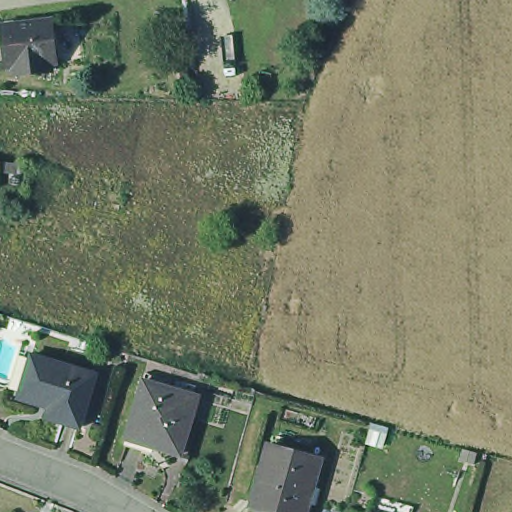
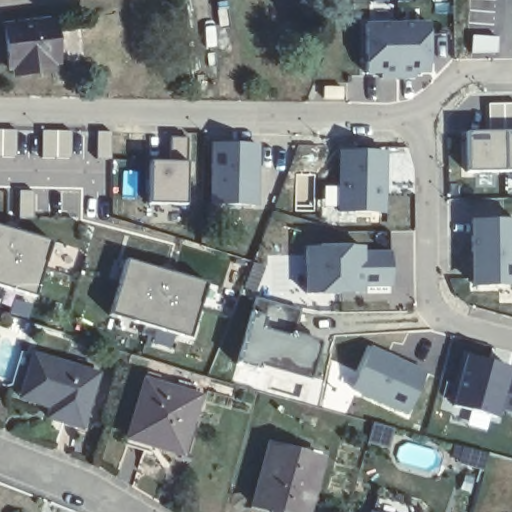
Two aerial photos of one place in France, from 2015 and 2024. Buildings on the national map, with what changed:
new [(433,21),(433,78),(366,78),(366,21),(433,21)]
unchanged [(18,73),(13,74),(7,32),(57,26),(62,68),(55,69),(56,77),(34,79),(19,80),(18,73)]
new [(512,171),(467,171),(467,130),(489,130),(489,103),(512,103),(512,171)]
new [(16,130),(16,158),(0,158),(0,130),(16,130)]
new [(71,131),(71,159),(42,159),(42,131),(71,131)]
new [(97,131),(111,131),(111,159),(96,159),(97,131)]
new [(171,161),(171,137),(187,137),(187,203),(151,203),(152,160),(171,161)]
new [(263,145),(262,210),(211,209),(211,144),(263,145)]
new [(387,212),(338,212),(338,207),(325,207),(325,186),(339,186),(339,150),(387,149),(387,212)]
demolished [(11,159),(10,171),(0,170),(0,159),(11,159)]
new [(20,191),(35,191),(35,219),(20,219),(20,191)]
new [(512,287),(472,286),(472,219),(512,219),(512,287)]
new [(51,241),(36,297),(2,285),(0,295),(0,226),(51,241)]
new [(366,245),(366,250),(393,250),(393,288),(365,288),(365,294),(305,295),(305,246),(366,245)]
new [(207,283),(192,339),(158,327),(155,339),(145,336),(147,324),(112,313),(129,260),(207,283)]
new [(264,316),(267,303),(298,310),(291,337),(314,344),(306,378),(262,366),(260,372),(237,365),(251,313),(264,316)]
new [(427,372),(407,416),(351,390),(371,345),(427,372)]
new [(492,348),(512,354),(512,360),(511,366),(512,367),(512,378),(512,414),(503,411),(500,420),(454,407),(466,352),(489,358),(492,348)]
unchanged [(96,376),(80,429),(47,419),(52,403),(21,394),(33,356),(96,376)]
unchanged [(151,452),(122,443),(125,436),(140,387),(195,404),(178,453),(175,460),(151,452)]
unchanged [(253,512),(270,453),(319,467),(308,512),(253,512)]

